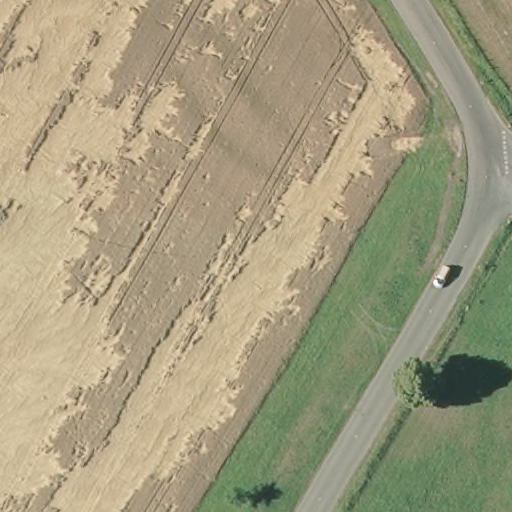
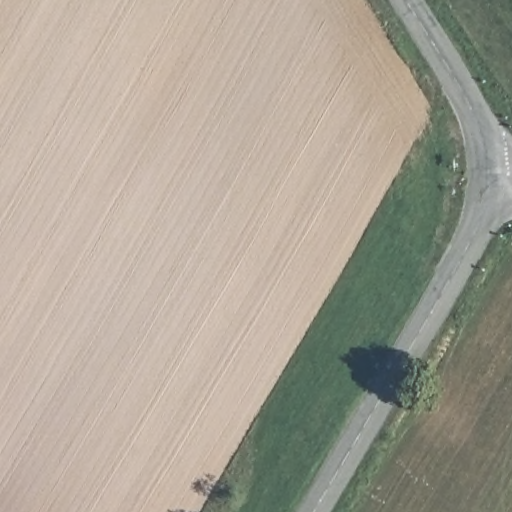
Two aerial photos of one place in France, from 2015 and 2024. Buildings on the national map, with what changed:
[]

